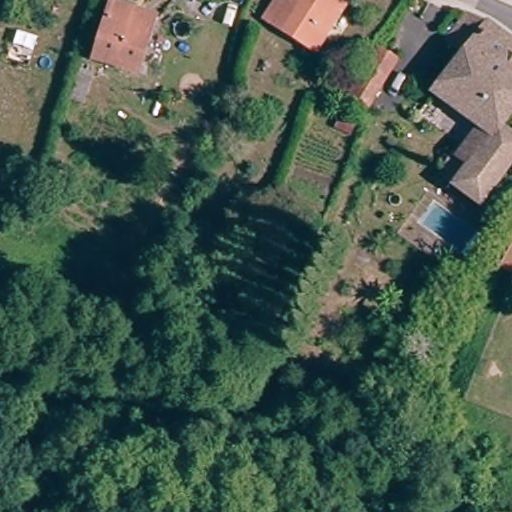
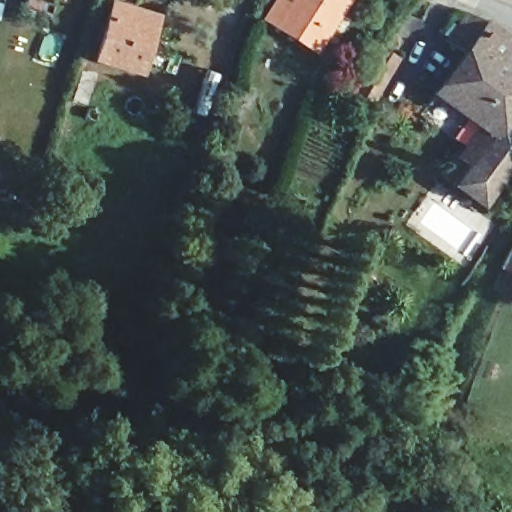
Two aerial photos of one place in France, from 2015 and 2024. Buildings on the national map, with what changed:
unchanged [(345,0),(349,3),(318,47),(283,24),(272,15),(282,0),(345,0)]
unchanged [(100,54),(115,5),(155,16),(140,65),(100,54)]
unchanged [(512,47),(512,110),(499,128),(512,137),(512,160),(481,203),(468,194),(440,175),(451,159),(465,169),(477,152),(458,137),(472,117),(460,109),(441,135),(413,115),(460,50),(446,40),(465,13),(512,47)]
unchanged [(385,94),(372,87),(357,80),(385,26),(396,32),(414,41),(386,95),(385,94)]
unchanged [(25,172),(20,190),(0,185),(0,168),(1,165),(25,172)]
unchanged [(512,234),(512,267),(497,257),(512,234)]

